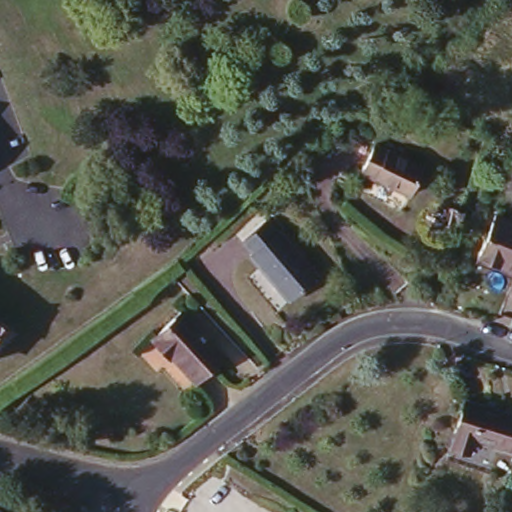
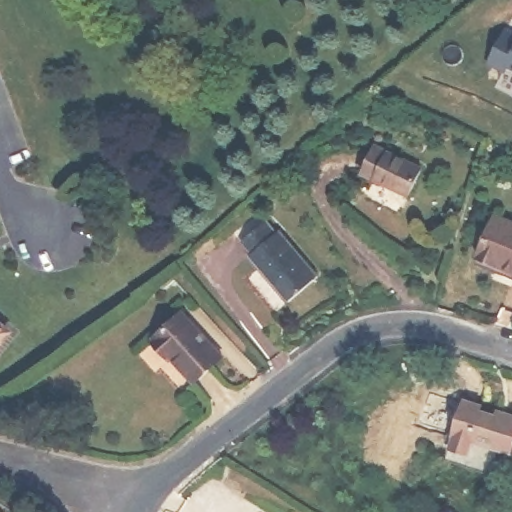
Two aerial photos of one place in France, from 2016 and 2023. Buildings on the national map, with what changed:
new [(509,71),(487,60),(505,24),(512,27),(512,66),(509,71)]
unchanged [(373,141),(422,168),(406,196),(357,169),(373,141)]
unchanged [(472,255),(490,213),(512,222),(512,272),(472,255)]
unchanged [(264,222),(275,232),(278,229),(318,272),(288,303),(247,259),(249,258),(239,246),(264,222)]
unchanged [(0,329),(0,310),(9,318),(0,329)]
unchanged [(177,312),(221,355),(193,384),(148,342),(177,312)]
unchanged [(482,406),(481,409),(503,417),(505,413),(512,415),(512,441),(508,451),(470,438),(466,452),(447,446),(462,399),(482,406)]
unchanged [(0,505),(8,512),(0,512),(0,505)]

